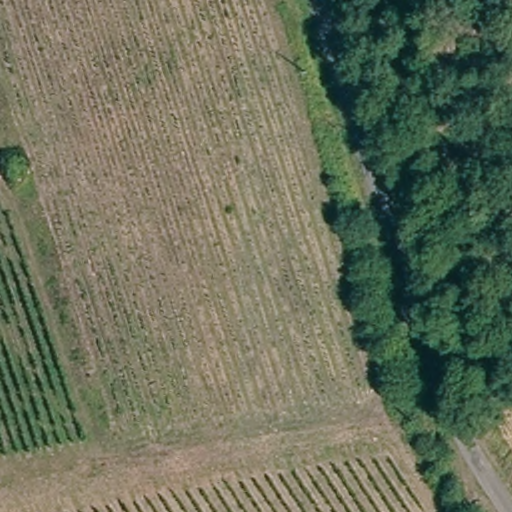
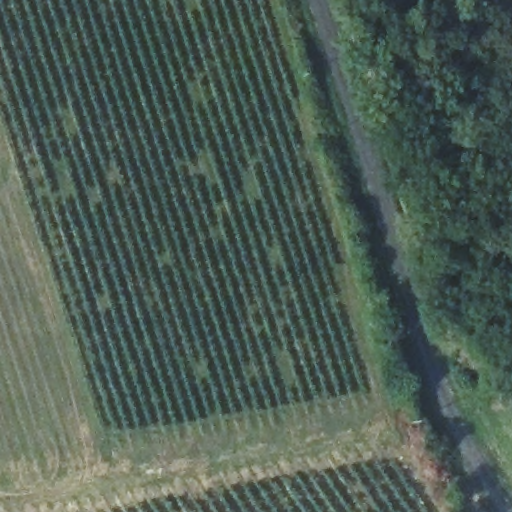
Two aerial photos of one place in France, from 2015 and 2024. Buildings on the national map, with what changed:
[]

